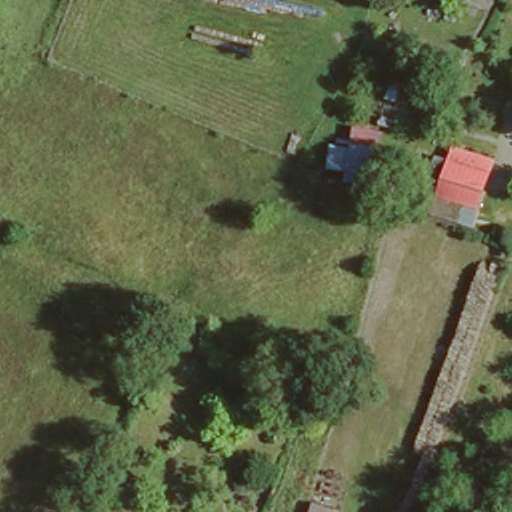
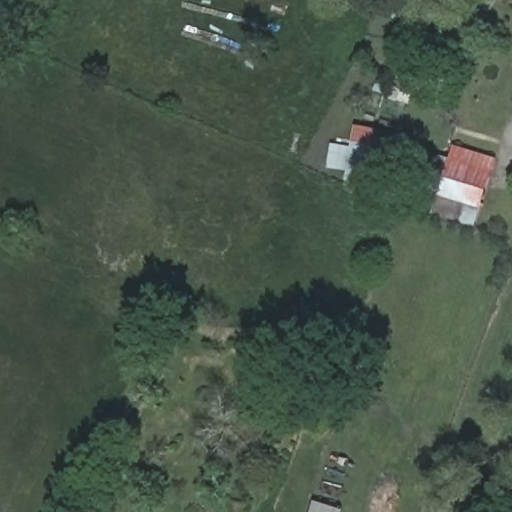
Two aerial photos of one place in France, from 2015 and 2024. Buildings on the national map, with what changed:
unchanged [(377,186),(345,183),(347,173),(330,170),(330,146),(352,147),(356,129),(385,134),(377,186)]
unchanged [(475,225),(410,204),(426,155),(435,159),(438,154),(447,156),(452,144),(497,160),(475,225)]
unchanged [(344,507),(342,512),(309,512),(313,498),(344,507)]

